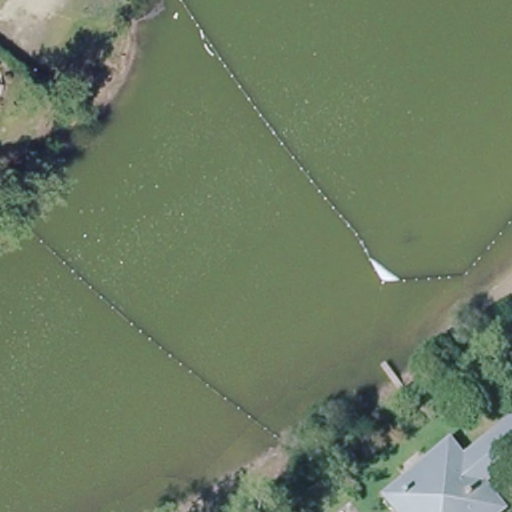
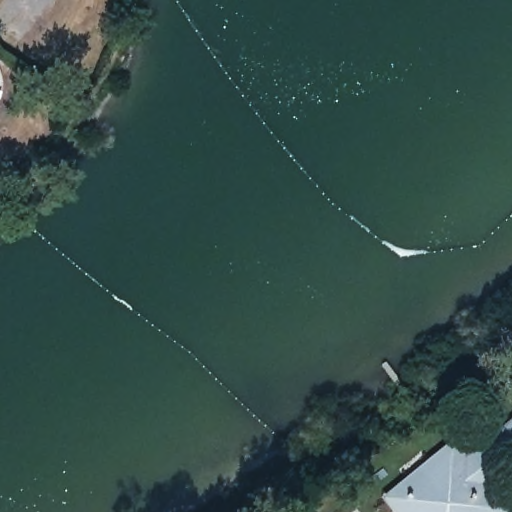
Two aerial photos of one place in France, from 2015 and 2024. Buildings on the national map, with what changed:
unchanged [(455,454),(467,468),(473,463),(512,430),(512,472),(499,484),(496,480),(495,482),(485,491),(502,511),(500,512),(406,512),(396,501),(406,493),(455,454)]

